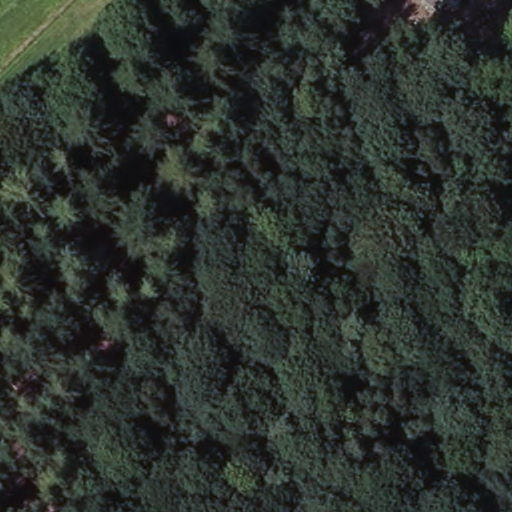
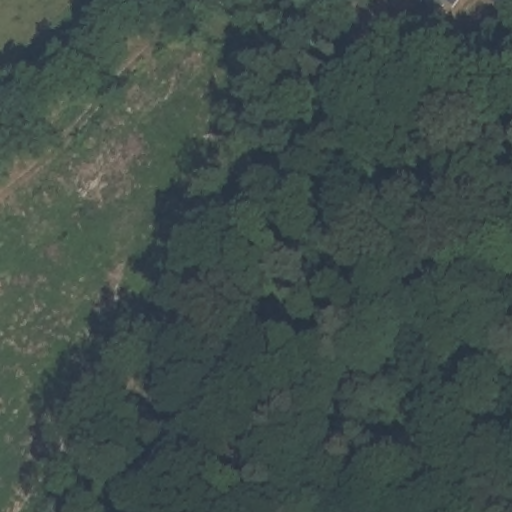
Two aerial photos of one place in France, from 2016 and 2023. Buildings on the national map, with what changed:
unchanged [(420,1),(421,0),(464,0),(448,18),(420,1)]

